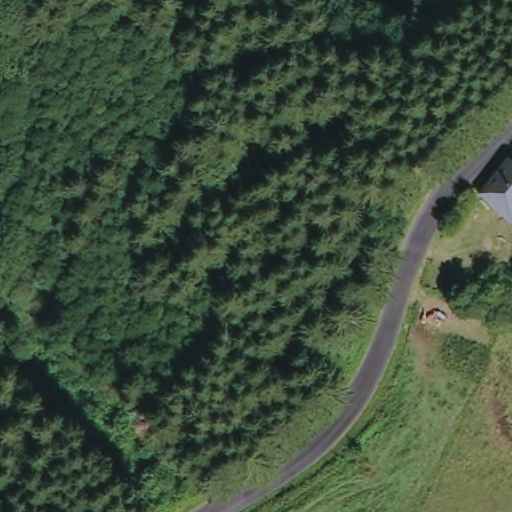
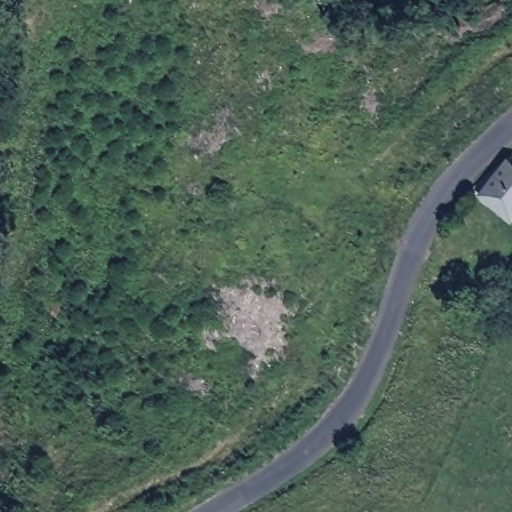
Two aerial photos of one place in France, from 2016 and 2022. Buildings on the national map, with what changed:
unchanged [(512,174),(512,223),(487,197),(512,174)]

